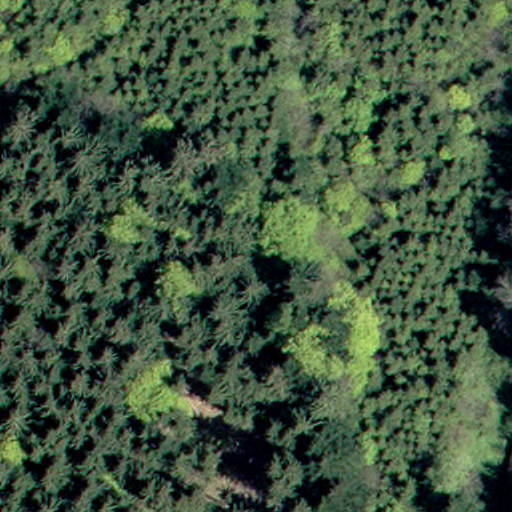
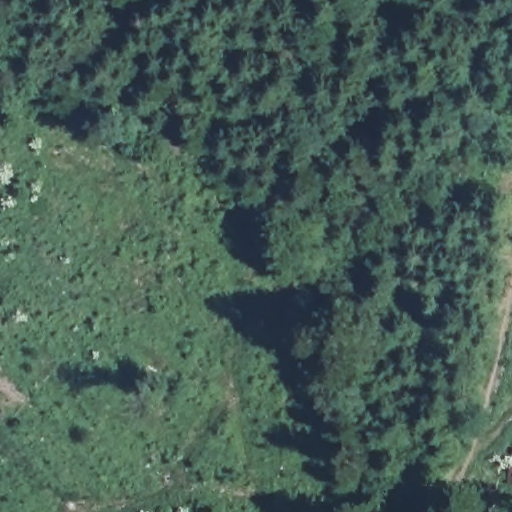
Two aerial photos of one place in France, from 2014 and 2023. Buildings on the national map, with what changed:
unchanged [(512,472),(512,475),(511,475),(512,472)]

